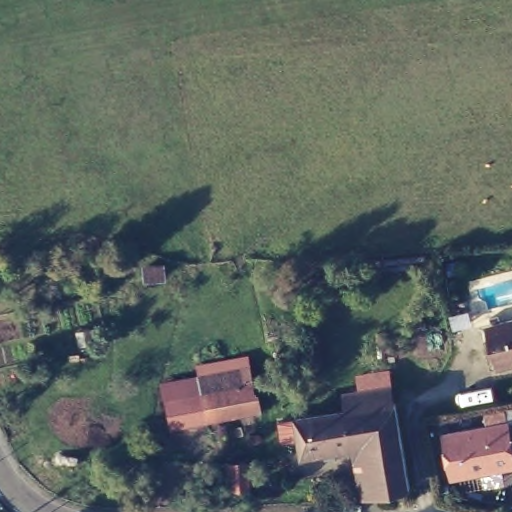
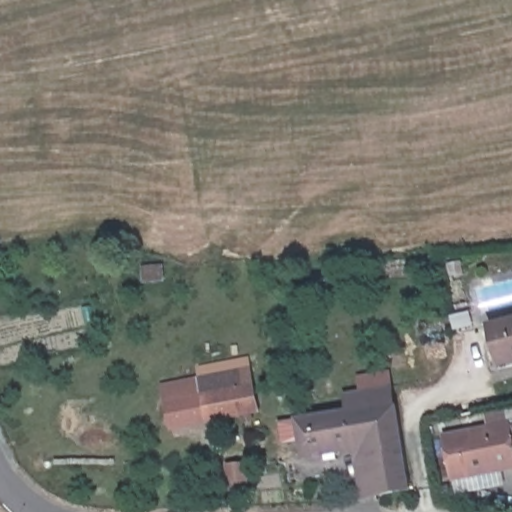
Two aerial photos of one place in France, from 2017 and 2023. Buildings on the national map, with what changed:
unchanged [(506,366),(497,326),(512,323),(512,365),(506,366)]
unchanged [(184,405),(204,399),(201,383),(250,374),(258,414),(188,427),(184,405)]
unchanged [(396,403),(409,486),(378,489),(373,448),(305,455),(300,421),(396,403)]
unchanged [(512,432),(512,467),(455,476),(445,430),(510,422),(512,432)]

